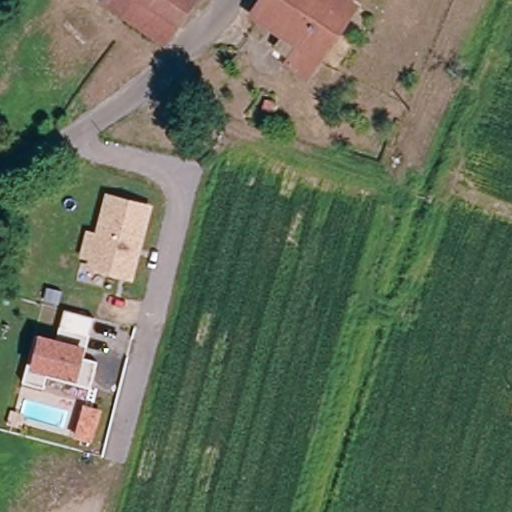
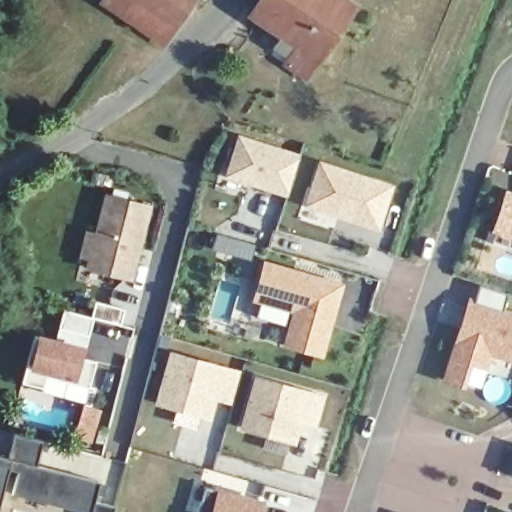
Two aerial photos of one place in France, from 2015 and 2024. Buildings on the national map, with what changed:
unchanged [(190,0),(196,4),(187,18),(165,51),(160,48),(103,11),(110,0),(190,0)]
unchanged [(343,0),(361,12),(313,86),(291,71),(296,64),(282,55),(289,44),(256,22),(270,0),(343,0)]
unchanged [(279,106),(276,115),(263,110),(266,102),(279,106)]
new [(230,175),(242,140),(301,159),(290,195),(230,175)]
new [(395,185),(379,231),(304,207),(320,161),(395,185)]
new [(512,239),(492,232),(507,191),(512,192),(512,239)]
unchanged [(87,231),(96,232),(106,194),(151,203),(134,281),(86,269),(89,260),(81,257),(87,231)]
new [(287,347),(297,313),(257,302),(267,266),(342,288),(323,357),(287,347)]
new [(505,309),(512,312),(512,363),(493,357),(488,372),(472,366),(462,390),(443,382),(470,298),(477,300),(482,284),(510,295),(505,309)]
unchanged [(28,368),(39,333),(58,338),(61,327),(89,335),(84,357),(96,360),(86,400),(22,385),(28,368)]
new [(241,369),(231,404),(218,400),(212,421),(154,405),(169,351),(241,369)]
new [(313,426),(296,421),(290,441),(242,428),(256,379),(321,397),(313,426)]
new [(13,493),(19,470),(10,468),(0,503),(0,453),(8,456),(15,430),(44,438),(37,462),(101,478),(95,501),(114,508),(112,512),(85,512),(13,493)]
new [(206,488),(218,491),(219,487),(266,500),(262,512),(199,512),(206,488)]

